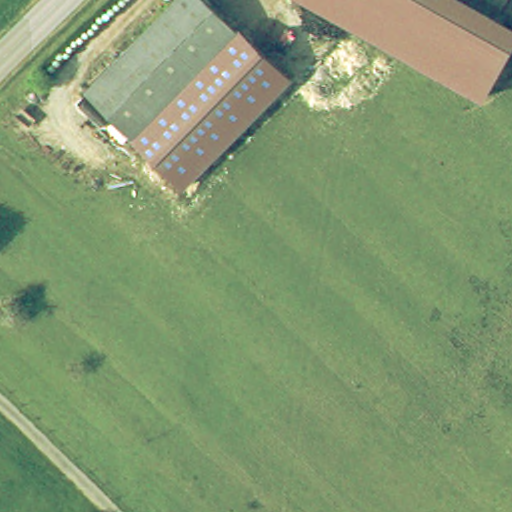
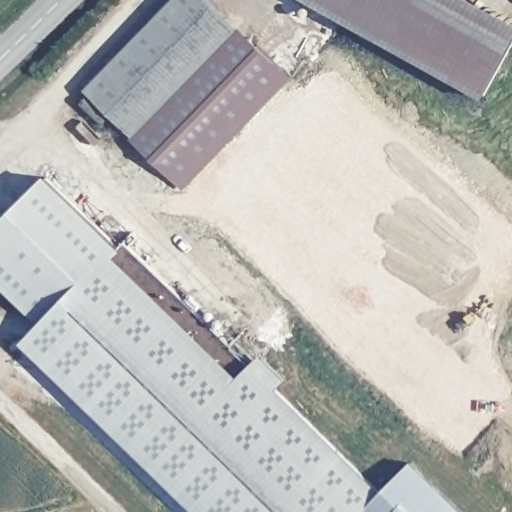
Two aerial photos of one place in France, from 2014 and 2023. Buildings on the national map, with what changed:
unchanged [(181,0),(214,0),(234,19),(129,129),(93,95),(181,0)]
unchanged [(490,22),(461,71),(459,76),(332,0),(480,0),(497,10),(490,22)]
unchanged [(246,29),(142,141),(129,129),(234,19),(246,29)]
unchanged [(294,77),(183,189),(142,141),(246,29),(294,77)]
new [(123,247),(124,245),(253,369),(266,355),(288,376),(276,390),(384,491),(415,460),(467,512),(200,512),(27,341),(45,323),(0,279),(0,226),(51,176),(123,247)]

